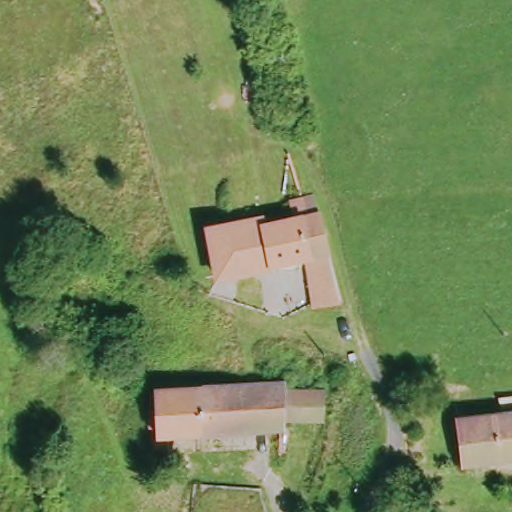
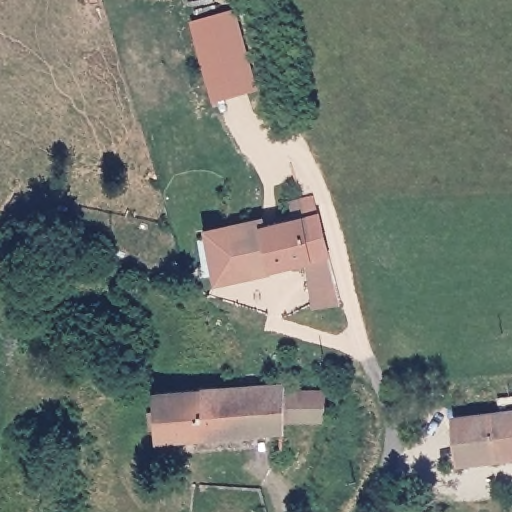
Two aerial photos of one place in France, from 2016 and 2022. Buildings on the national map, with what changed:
new [(197,25),(234,15),(255,89),(218,100),(197,25)]
unchanged [(336,287),(307,292),(303,274),(311,272),(308,262),(214,278),(207,234),(266,222),(267,228),(317,219),(336,287)]
unchanged [(27,323),(32,302),(47,306),(41,330),(27,323)]
unchanged [(279,388),(279,415),(279,434),(274,434),(262,433),(154,439),(152,392),(192,393),(192,387),(277,384),(279,388)]
unchanged [(316,387),(317,416),(279,415),(279,388),(316,387)]
unchanged [(452,425),(492,419),(491,404),(512,401),(512,460),(455,467),(452,425)]

